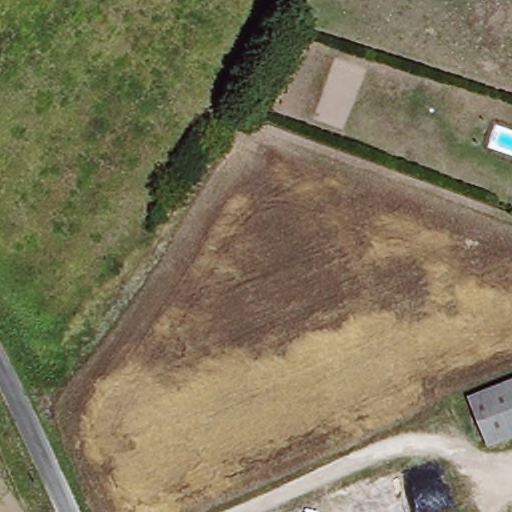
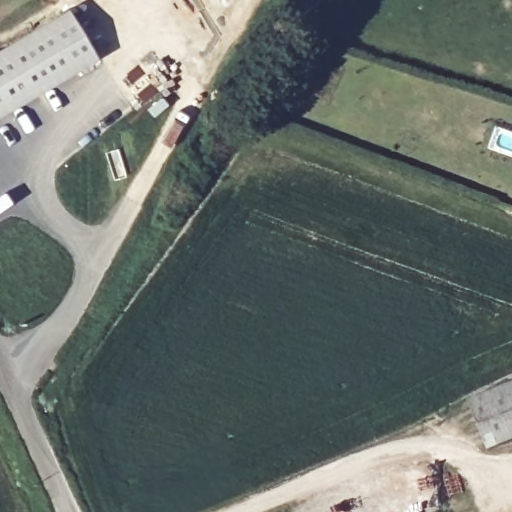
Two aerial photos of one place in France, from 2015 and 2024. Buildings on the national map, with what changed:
new [(96,60),(0,116),(0,52),(68,12),(96,60)]
unchanged [(486,453),(465,403),(512,384),(512,443),(486,453)]

